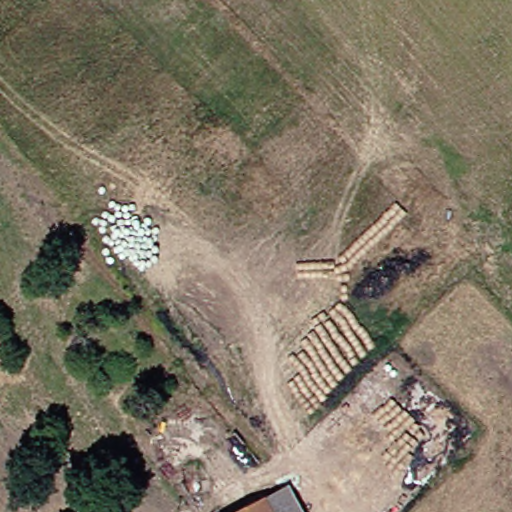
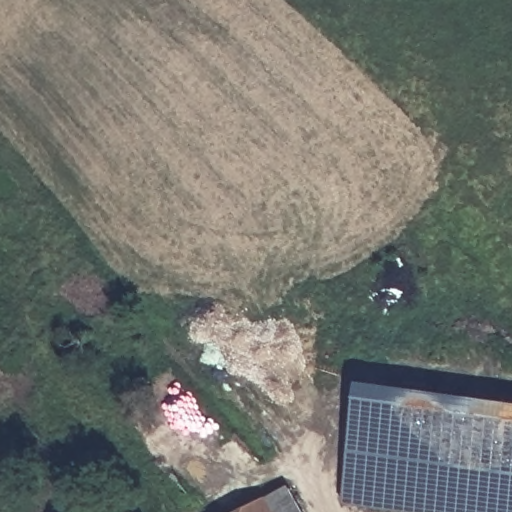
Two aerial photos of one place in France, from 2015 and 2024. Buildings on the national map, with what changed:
new [(420,512),(344,501),(361,377),(512,398),(512,512),(420,512)]
unchanged [(270,512),(242,512),(263,499),(270,512)]

